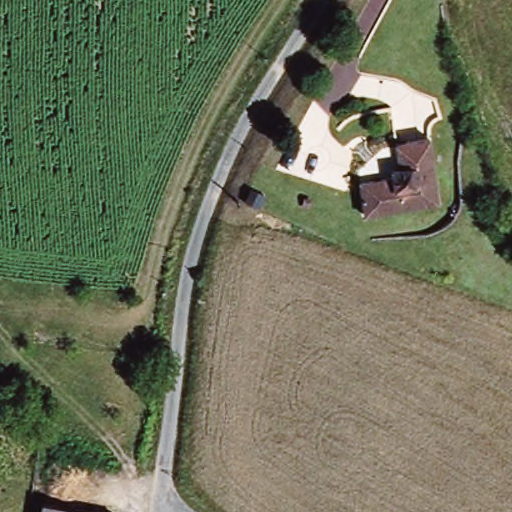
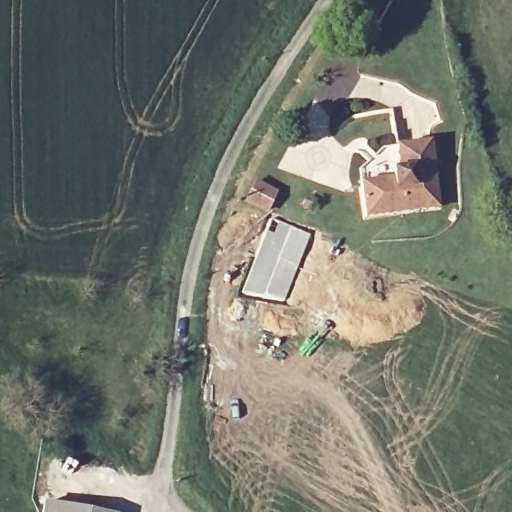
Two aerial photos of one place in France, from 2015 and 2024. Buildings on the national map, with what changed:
unchanged [(398,165),(397,145),(430,141),(435,183),(437,206),(358,216),(355,183),(388,179),(387,166),(398,165)]
new [(253,179),(277,190),(266,213),(242,202),(253,179)]
new [(271,215),(312,232),(286,303),(240,293),(271,215)]
unchanged [(61,512),(41,512),(43,503),(62,505),(61,512)]
unchanged [(62,505),(105,512),(61,512),(62,505)]

